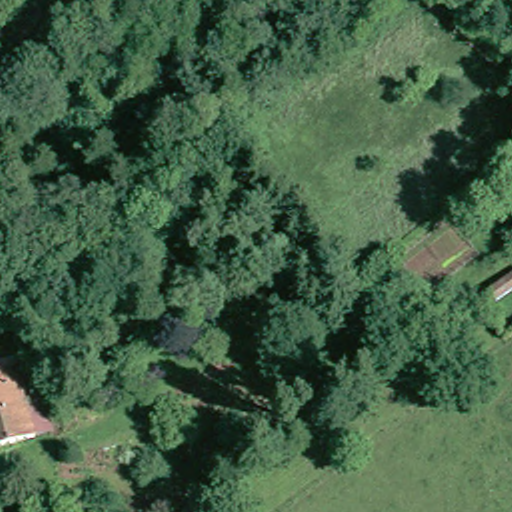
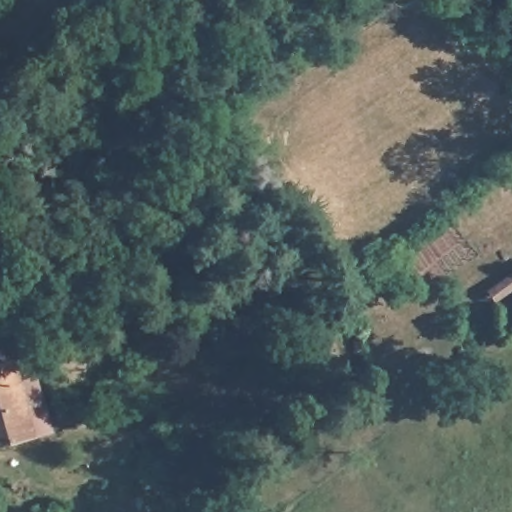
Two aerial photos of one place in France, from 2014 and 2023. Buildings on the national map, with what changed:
unchanged [(0,358),(8,355),(17,385),(35,447),(0,456),(0,358)]
unchanged [(39,379),(54,441),(35,447),(17,385),(39,379)]

